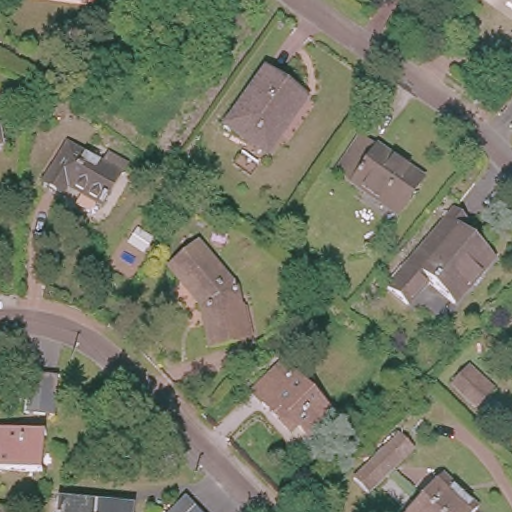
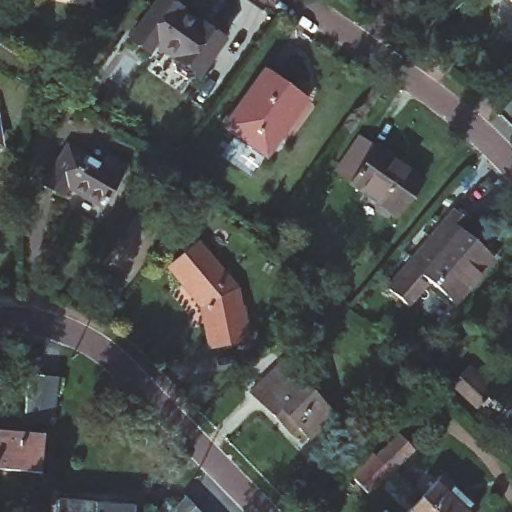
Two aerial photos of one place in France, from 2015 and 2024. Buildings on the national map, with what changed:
new [(173,0),(178,4),(177,6),(196,20),(198,18),(222,36),(197,71),(194,69),(191,74),(184,75),(172,67),(171,61),(175,55),(153,40),(146,49),(128,35),(153,0),(173,0)]
unchanged [(302,100),(282,129),(278,126),(272,135),(277,137),(263,157),(220,127),(258,70),(302,100)]
unchanged [(418,181),(395,217),(335,174),(360,139),(418,181)]
unchanged [(64,141),(97,162),(105,150),(127,166),(95,220),(41,184),(64,141)]
unchanged [(476,221),(475,223),(505,251),(458,306),(434,285),(410,311),(387,290),(462,208),(476,221)]
unchanged [(215,267),(227,282),(238,298),(249,329),(215,346),(196,302),(169,267),(198,246),(215,267)]
unchanged [(509,326),(512,323),(512,328),(509,326)]
unchanged [(332,413),(309,437),(296,425),(288,433),(251,395),(284,363),(332,413)]
unchanged [(480,387),(467,400),(444,377),(457,364),(480,387)]
unchanged [(60,374),(56,414),(23,411),(27,371),(60,374)]
unchanged [(35,472),(0,467),(0,429),(40,433),(35,472)]
unchanged [(345,478),(368,455),(388,435),(403,451),(383,470),(360,492),(345,478)]
unchanged [(440,472),(476,507),(471,512),(442,512),(421,492),(440,472)]
unchanged [(442,512),(402,512),(421,492),(442,512)]
unchanged [(198,512),(165,512),(182,495),(198,512)]
unchanged [(130,510),(129,512),(54,512),(55,502),(130,510)]

